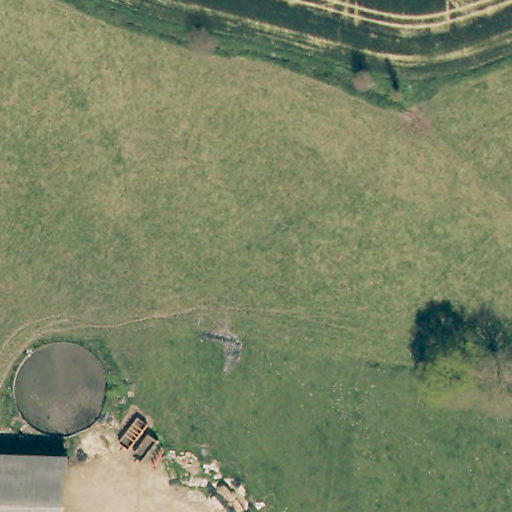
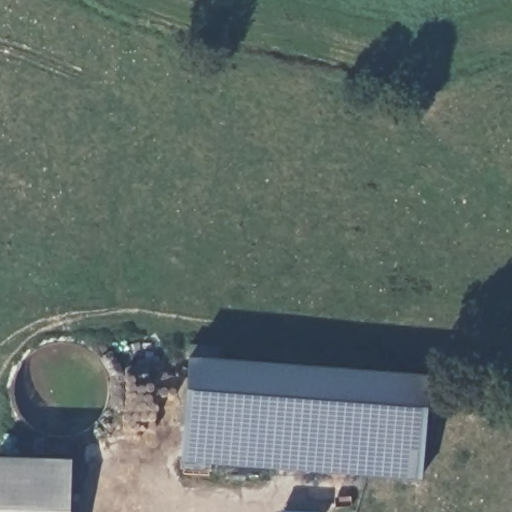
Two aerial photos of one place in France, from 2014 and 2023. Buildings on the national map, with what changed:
new [(180,461),(188,355),(188,344),(222,346),(225,358),(428,373),(420,478),(180,461)]
unchanged [(71,462),(69,512),(0,512),(0,458),(71,462)]

